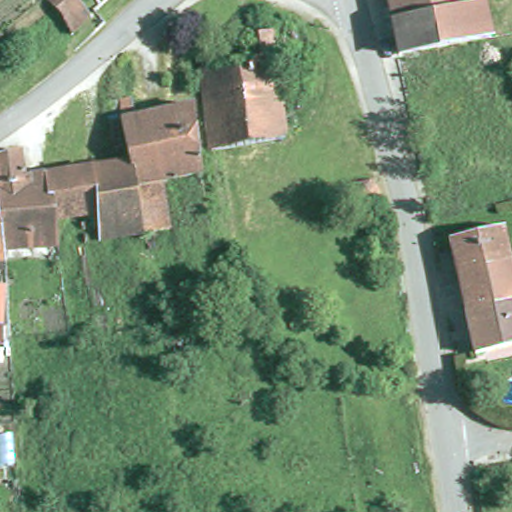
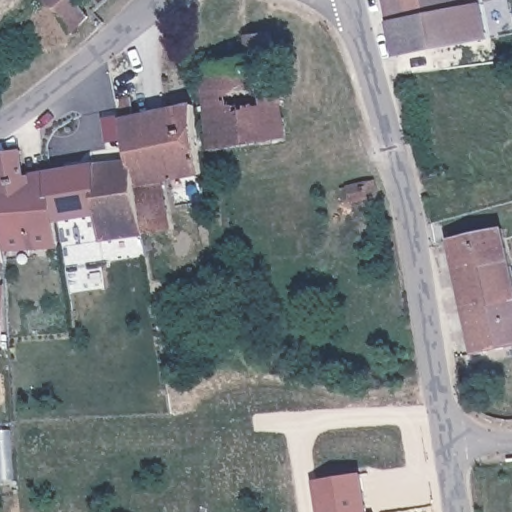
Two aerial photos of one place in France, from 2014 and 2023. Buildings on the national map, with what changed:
unchanged [(70,35),(45,3),(43,0),(76,0),(90,16),(70,35)]
unchanged [(495,37),(402,55),(391,0),(487,0),(495,37)]
unchanged [(285,96),(290,135),(270,139),(267,140),(220,150),(217,151),(211,110),(210,103),(205,66),(208,66),(224,63),(253,59),(250,36),(276,32),(285,96)]
unchanged [(129,160),(121,120),(124,120),(120,100),(132,98),(135,117),(194,105),(202,173),(157,181),(162,207),(166,206),(170,228),(144,233),(129,160)]
unchanged [(0,205),(0,153),(20,152),(24,176),(45,173),(54,220),(59,246),(5,249),(0,205)]
unchanged [(99,240),(99,214),(54,220),(45,173),(129,160),(144,233),(99,240)]
unchanged [(351,203),(347,187),(375,180),(379,196),(351,203)]
unchanged [(0,259),(0,205),(5,249),(7,259),(0,259)]
unchanged [(450,240),(504,228),(512,265),(512,345),(475,353),(450,240)]
unchanged [(0,345),(0,287),(4,287),(1,345),(0,345)]
new [(369,512),(318,512),(313,480),(364,472),(369,512)]

